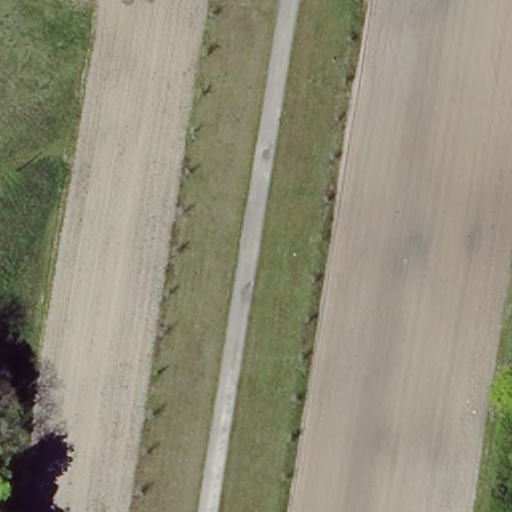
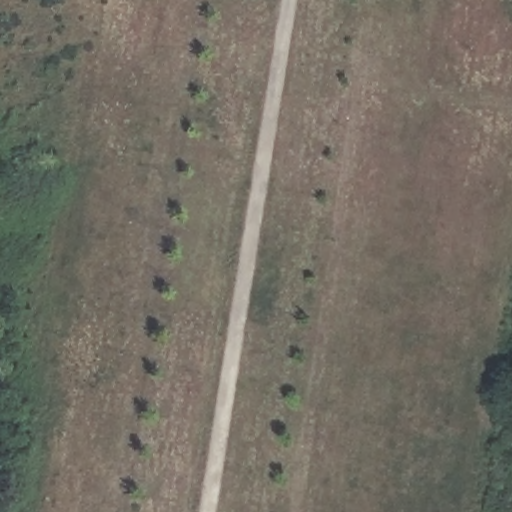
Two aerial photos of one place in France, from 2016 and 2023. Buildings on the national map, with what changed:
[]

